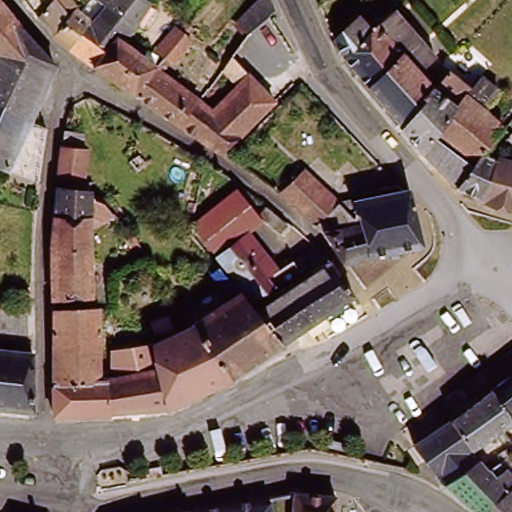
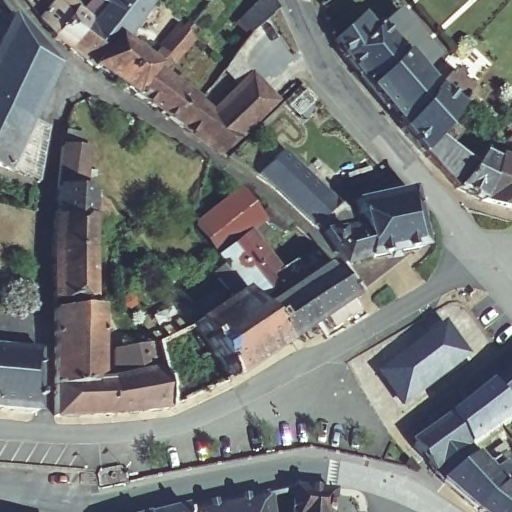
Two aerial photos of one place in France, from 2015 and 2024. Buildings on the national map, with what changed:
unchanged [(0,0),(5,0),(23,22),(0,46),(0,0)]
unchanged [(41,16),(58,0),(75,0),(82,9),(82,10),(96,22),(72,50),(58,38),(41,16)]
unchanged [(96,22),(110,7),(99,0),(148,0),(152,2),(126,42),(152,61),(161,50),(157,47),(177,24),(186,31),(136,95),(72,50),(96,22)]
unchanged [(216,108),(205,99),(212,88),(226,99),(243,82),(226,67),(249,35),(240,19),(259,0),(272,0),(277,10),(271,16),(296,52),(283,61),(298,81),(223,150),(200,137),(216,108)]
unchanged [(422,77),(428,83),(441,68),(450,77),(406,131),(355,75),(344,57),(337,42),(366,16),(379,29),(396,13),(438,61),(422,77)]
unchanged [(0,46),(23,22),(57,64),(34,120),(0,106),(0,46)]
unchanged [(205,99),(216,108),(200,137),(136,95),(186,31),(195,37),(176,61),(173,59),(163,70),(192,90),(213,63),(218,67),(221,63),(226,67),(212,88),(205,99)]
unchanged [(423,156),(404,133),(406,131),(450,77),(467,99),(423,156)]
unchanged [(501,128),(483,154),(495,161),(483,204),(459,192),(423,156),(467,99),(482,80),(498,93),(483,113),(501,128)]
unchanged [(0,106),(34,120),(32,127),(47,127),(40,181),(0,165),(0,106)]
unchanged [(58,185),(61,146),(88,147),(85,189),(58,185)]
unchanged [(483,204),(495,161),(496,159),(512,163),(512,210),(483,204)]
unchanged [(318,221),(283,192),(307,169),(341,202),(318,221)]
unchanged [(93,296),(55,296),(54,232),(58,185),(85,189),(91,189),(92,195),(105,200),(116,211),(93,230),(93,296)]
unchanged [(242,244),(222,261),(196,228),(196,220),(237,187),(268,222),(242,244)]
unchanged [(423,246),(372,256),(362,222),(360,214),(352,215),(341,202),(406,190),(414,189),(426,244),(423,246)]
unchanged [(288,231),(265,216),(270,209),(292,225),(288,231)]
unchanged [(351,263),(323,229),(362,222),(372,256),(351,263)]
unchanged [(235,282),(239,280),(222,261),(242,244),(254,257),(259,255),(266,262),(261,267),(270,277),(290,262),(299,272),(307,267),(315,275),(333,261),(358,295),(285,347),(235,282)]
unchanged [(232,380),(194,322),(232,295),(215,271),(221,265),(235,282),(285,347),(232,380)]
unchanged [(137,339),(116,332),(114,294),(138,292),(142,339),(137,339)]
unchanged [(56,382),(55,307),(100,308),(100,382),(56,382)]
unchanged [(35,411),(0,409),(0,310),(25,310),(26,348),(35,349),(35,411)]
unchanged [(171,410),(156,341),(194,322),(232,380),(171,410)]
new [(441,329),(463,358),(401,406),(380,376),(441,329)]
unchanged [(113,415),(111,382),(133,381),(133,342),(137,339),(142,339),(155,339),(156,341),(171,410),(113,415)]
unchanged [(509,420),(510,419),(490,388),(512,371),(512,423),(509,420)]
unchanged [(56,415),(56,382),(100,382),(111,382),(113,415),(56,415)]
unchanged [(498,428),(470,448),(449,420),(490,388),(510,419),(509,420),(503,425),(498,428)]
unchanged [(477,457),(442,482),(413,445),(449,420),(470,448),(477,457)]
unchanged [(442,482),(477,457),(484,468),(507,450),(512,455),(512,481),(479,512),(476,512),(442,482)]
unchanged [(512,481),(512,512),(479,512),(512,481)]
unchanged [(297,492),(338,493),(336,512),(295,512),(297,492)]
unchanged [(275,502),(276,512),(214,512),(275,502)]

